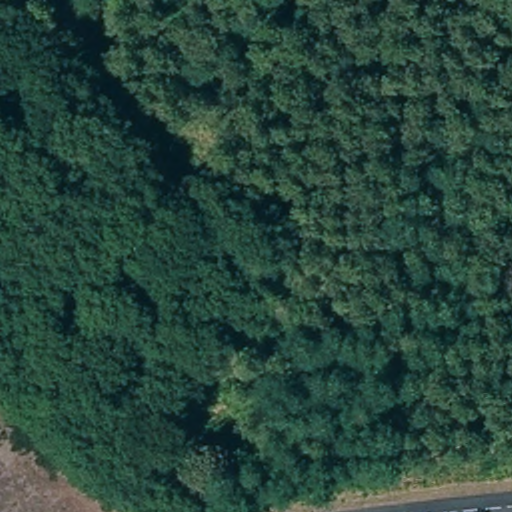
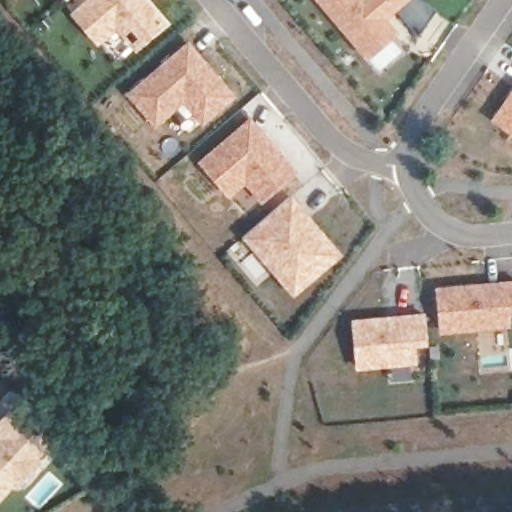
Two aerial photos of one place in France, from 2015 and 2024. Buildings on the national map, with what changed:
new [(167,24),(134,52),(116,30),(108,36),(81,3),(85,0),(147,0),(167,24)]
new [(437,11),(419,35),(398,10),(387,18),(399,33),(367,60),(315,0),(422,0),(437,11)]
new [(237,97),(204,126),(185,104),(159,125),(126,90),(189,40),(237,97)]
new [(490,121),(512,90),(512,136),(490,121)]
new [(299,174),(262,204),(245,186),(231,197),(200,159),(251,118),(299,174)]
new [(344,255),(294,298),(242,237),(293,195),(344,255)]
new [(512,281),(512,314),(509,314),(511,327),(441,334),(437,287),(512,281)]
new [(427,312),(429,346),(417,347),(418,365),(357,370),(352,319),(427,312)]
new [(39,460),(42,462),(18,490),(14,487),(0,502),(0,440),(0,420),(11,409),(51,445),(39,460)]

